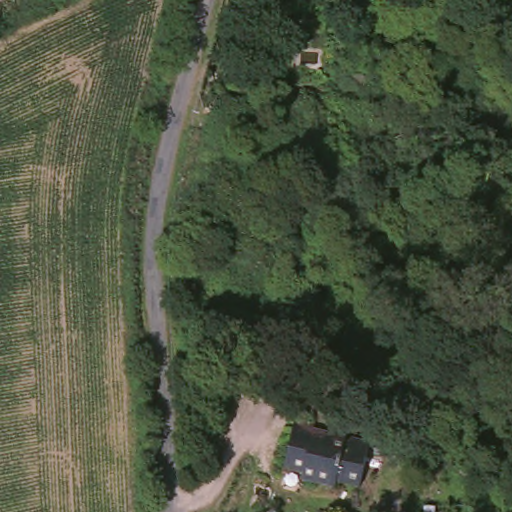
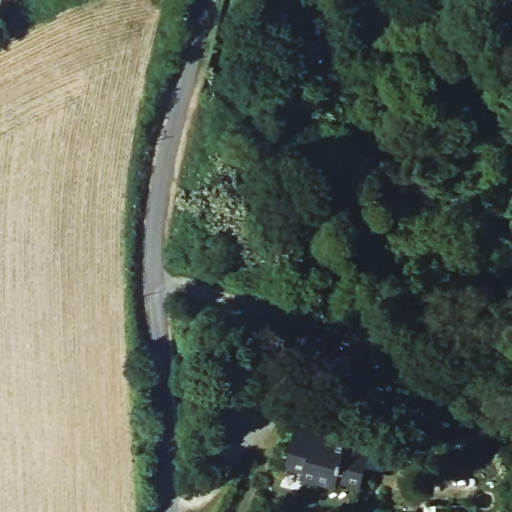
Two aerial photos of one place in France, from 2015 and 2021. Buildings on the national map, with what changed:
unchanged [(324,435),(344,439),(341,450),(348,451),(349,446),(364,450),(356,489),(336,484),(334,492),(298,482),(299,475),(281,469),(289,433),(323,441),(324,435)]

